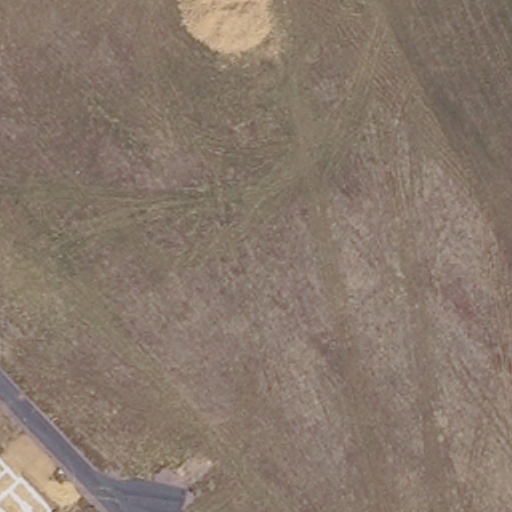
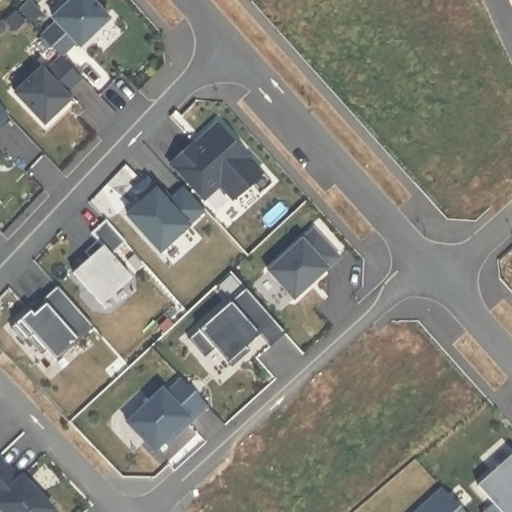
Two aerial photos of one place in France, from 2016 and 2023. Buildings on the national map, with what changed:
new [(54,19),(50,14),(64,0),(93,0),(107,15),(77,43),(74,40),(59,54),(39,33),(54,19)]
new [(79,76),(65,89),(69,94),(41,120),(12,89),(40,63),(44,68),(59,54),(79,76)]
new [(0,119),(0,107),(6,114),(0,119)]
new [(260,171),(231,198),(217,183),(200,198),(166,161),(191,139),(193,142),(198,137),(215,121),(260,171)]
new [(181,185),(202,208),(157,249),(124,212),(140,198),(131,189),(145,177),(165,200),(168,197),(181,185)]
new [(163,191),(168,197),(165,200),(160,194),(163,191)]
new [(98,304),(70,272),(87,257),(82,251),(95,240),(89,232),(104,219),(125,242),(107,252),(128,277),(98,304)]
new [(311,230),(337,258),(291,299),(265,271),(311,230)]
new [(44,349),(39,353),(25,338),(21,341),(8,326),(27,309),(39,299),(55,285),(91,326),(53,360),(44,349)]
new [(244,346),(241,343),(244,346),(247,350),(228,367),(211,348),(201,357),(185,338),(243,287),(283,333),(267,347),(255,332),(256,335),(244,346)]
new [(159,389),(164,393),(179,379),(205,405),(175,433),(172,431),(151,451),(124,422),(159,389)]
new [(475,487),(512,453),(512,512),(480,512),(490,503),(475,487)]
new [(46,512),(1,512),(0,511),(0,460),(16,478),(19,476),(50,509),(46,512)]
new [(462,512),(414,512),(440,489),(462,512)]

